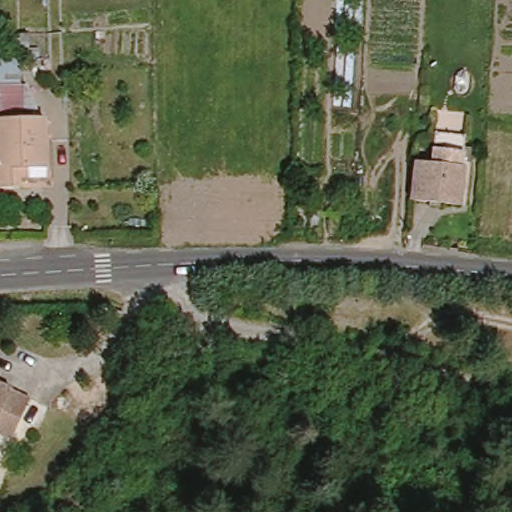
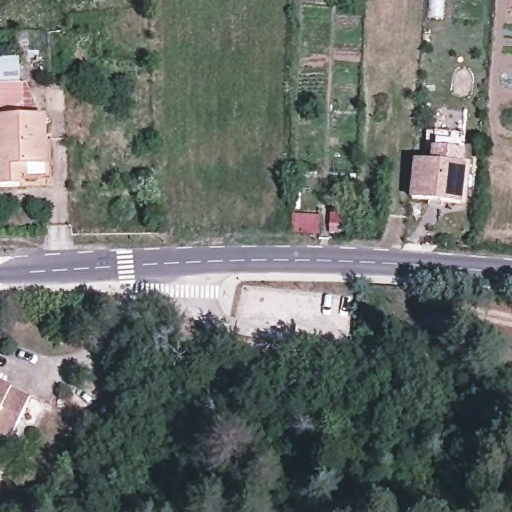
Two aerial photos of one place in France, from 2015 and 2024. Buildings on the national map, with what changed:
unchanged [(22,74),(24,107),(0,107),(0,74),(22,74)]
unchanged [(24,107),(43,106),(43,136),(48,136),(48,164),(20,165),(20,173),(0,173),(0,107),(24,107)]
unchanged [(458,166),(454,205),(405,201),(408,161),(422,163),(422,158),(425,141),(454,145),(452,160),(452,165),(458,166)]
unchanged [(288,194),(316,197),(315,230),(287,228),(288,194)]
unchanged [(25,402),(4,442),(0,440),(0,389),(25,402)]

